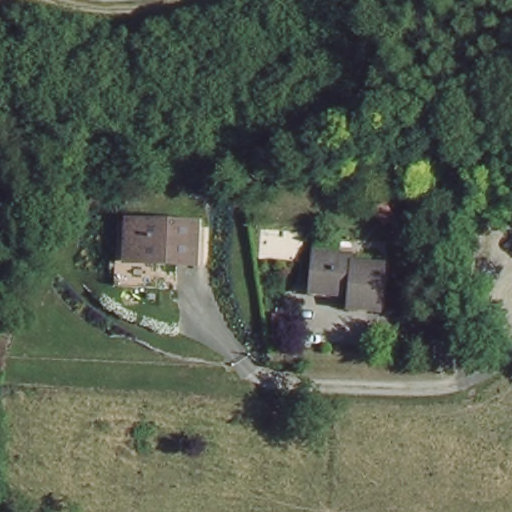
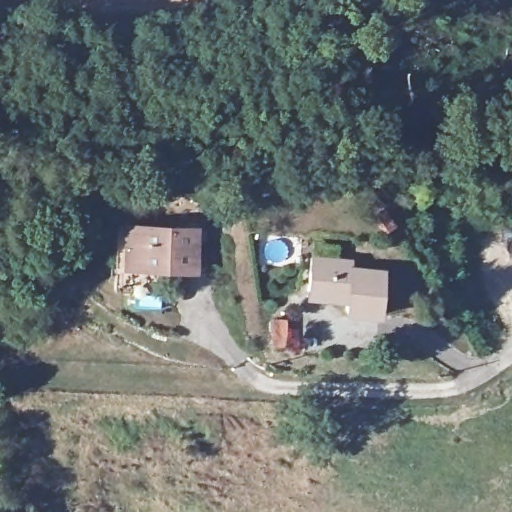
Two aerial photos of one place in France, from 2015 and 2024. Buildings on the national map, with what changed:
unchanged [(399,230),(385,240),(373,222),(388,212),(399,230)]
unchanged [(159,227),(198,229),(198,272),(158,272),(127,271),(128,226),(159,227)]
unchanged [(355,270),(388,272),(385,318),(353,315),(353,292),(316,289),(319,255),(355,258),(355,270)]

